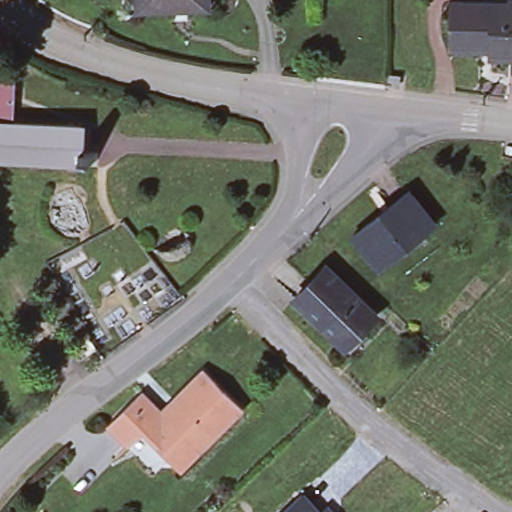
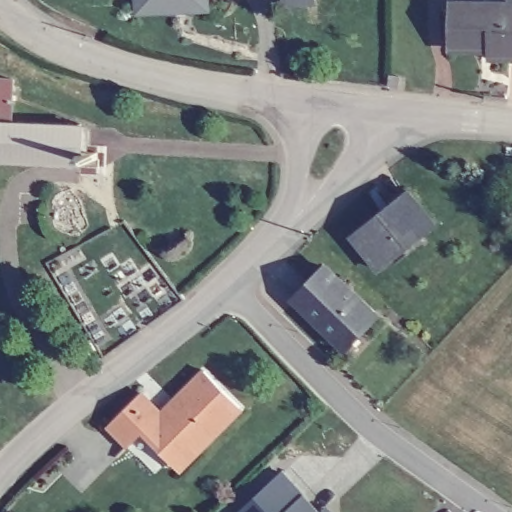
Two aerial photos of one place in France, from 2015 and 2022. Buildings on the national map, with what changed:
unchanged [(206,8),(135,11),(135,0),(206,0),(206,8)]
new [(311,5),(278,6),(278,0),(311,0),(311,5)]
unchanged [(488,50),(463,50),(450,50),(450,1),(462,1),(512,3),(512,58),(488,57),(488,50)]
unchanged [(12,74),(12,76),(11,76),(10,117),(77,120),(77,117),(80,117),(78,145),(96,146),(96,154),(80,153),(80,159),(77,159),(77,156),(0,153),(0,73),(12,74)]
unchanged [(482,150),(481,161),(472,160),(473,149),(482,150)]
unchanged [(406,190),(433,223),(376,268),(350,235),(406,190)]
unchanged [(348,351),(343,346),(292,297),(323,266),(374,315),(360,330),(365,335),(348,351)]
unchanged [(245,410),(182,475),(142,436),(128,449),(106,429),(142,393),(162,411),(203,371),(245,410)]
new [(239,512),(281,474),(304,495),(286,512),(239,512)]
unchanged [(319,512),(286,512),(304,495),(319,512)]
unchanged [(333,512),(319,512),(326,505),(333,512)]

